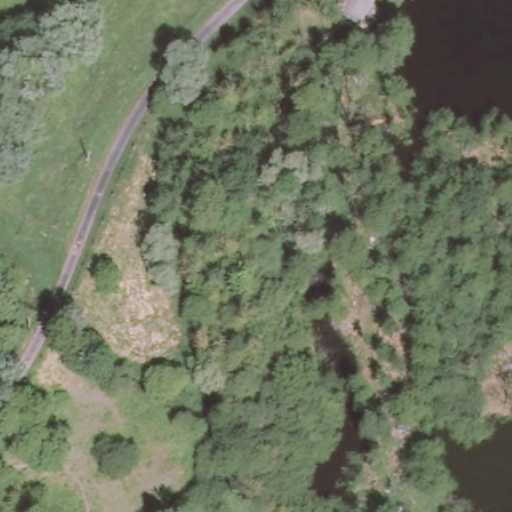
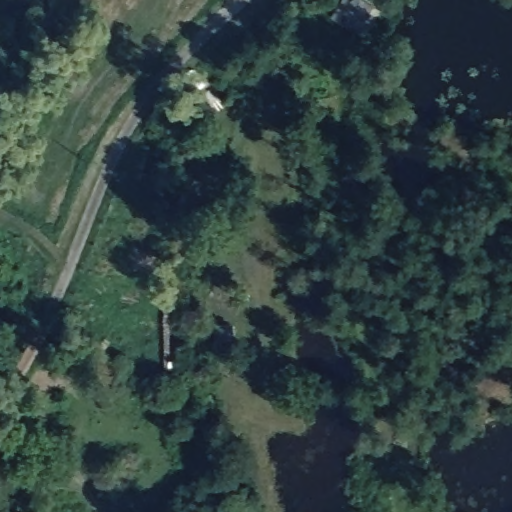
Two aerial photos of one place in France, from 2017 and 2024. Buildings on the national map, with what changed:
unchanged [(345,0),(373,0),(360,24),(337,14),(345,0)]

